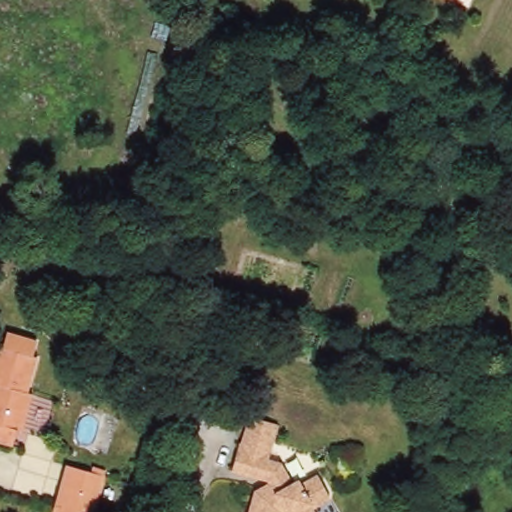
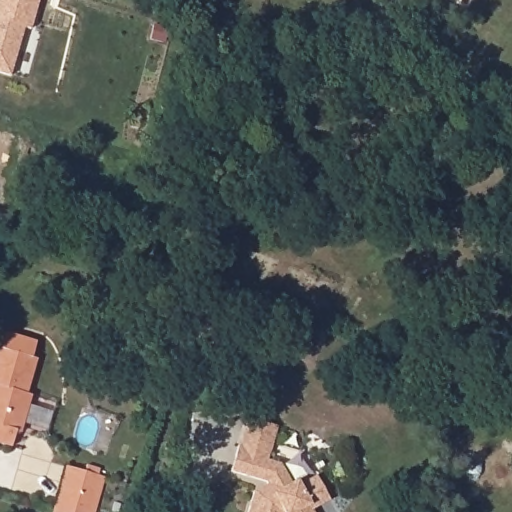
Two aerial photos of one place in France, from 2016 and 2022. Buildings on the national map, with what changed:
new [(32,29),(24,26),(11,74),(0,71),(0,0),(40,0),(32,29)]
unchanged [(17,244),(32,247),(27,266),(14,263),(17,244)]
unchanged [(207,304),(227,311),(220,332),(200,325),(207,304)]
unchanged [(27,390),(32,392),(21,429),(16,428),(12,443),(0,439),(0,344),(38,355),(27,390)]
unchanged [(270,453),(244,445),(253,417),(277,425),(270,453)]
unchanged [(244,445),(275,455),(272,462),(286,466),(296,487),(302,484),(303,488),(321,480),(333,504),(317,512),(313,512),(312,509),(306,512),(251,512),(256,498),(257,493),(272,487),(271,484),(235,472),(244,445)]
unchanged [(68,462),(107,474),(95,512),(61,512),(54,510),(68,462)]

